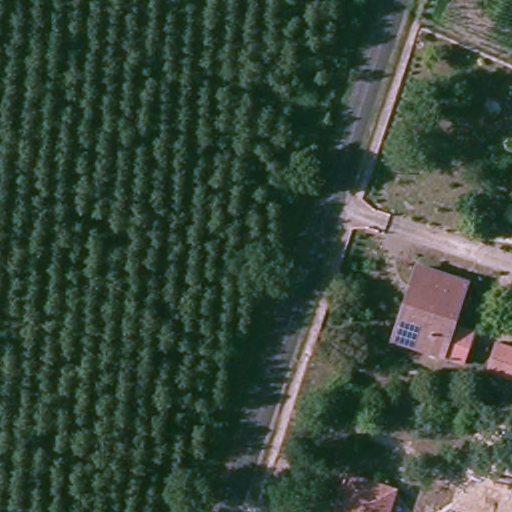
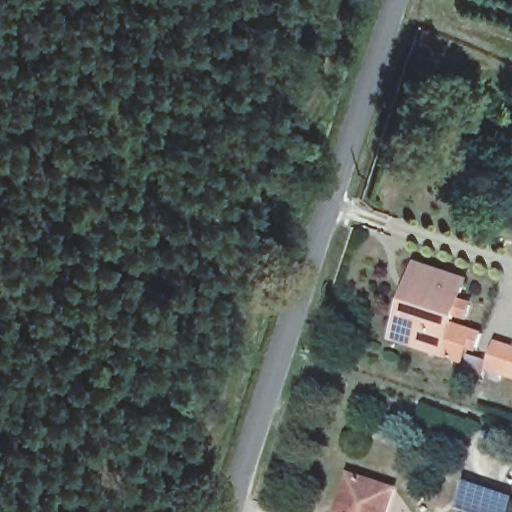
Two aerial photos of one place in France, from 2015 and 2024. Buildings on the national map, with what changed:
unchanged [(465,366),(444,358),(428,353),(397,342),(413,288),(419,267),(468,285),(455,323),(477,332),(465,366)]
unchanged [(500,342),(512,345),(512,376),(491,370),(500,342)]
unchanged [(389,512),(339,512),(353,472),(398,488),(389,512)]
new [(512,496),(512,509),(511,512),(464,512),(455,509),(464,480),(512,496)]

